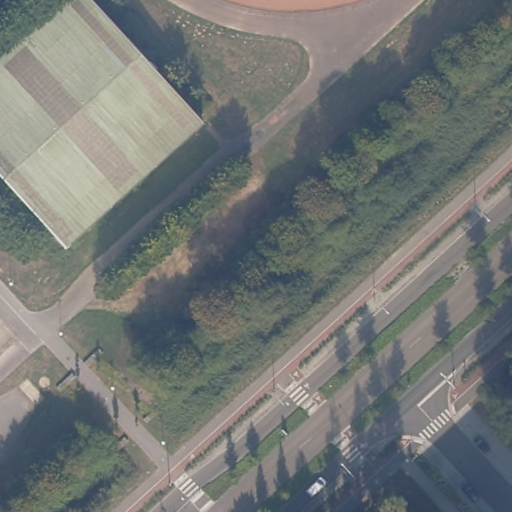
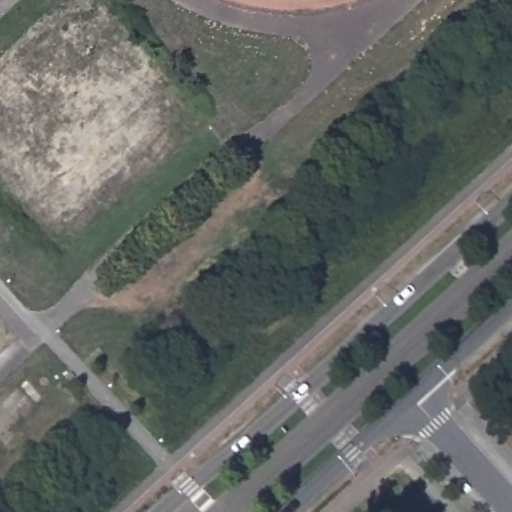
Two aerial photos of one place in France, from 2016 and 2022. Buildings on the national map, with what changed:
demolished [(59,0),(86,0),(196,122),(64,242),(0,171),(0,53),(59,0)]

